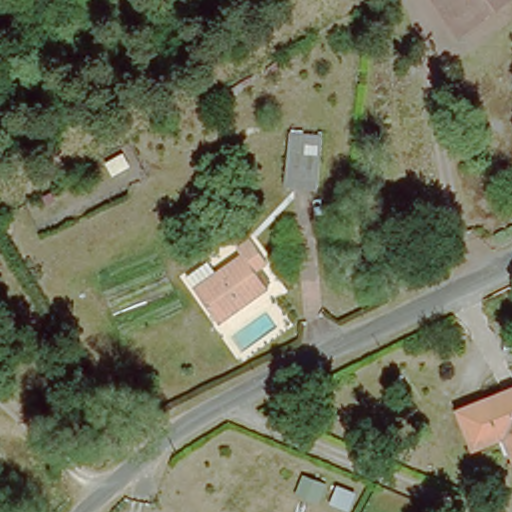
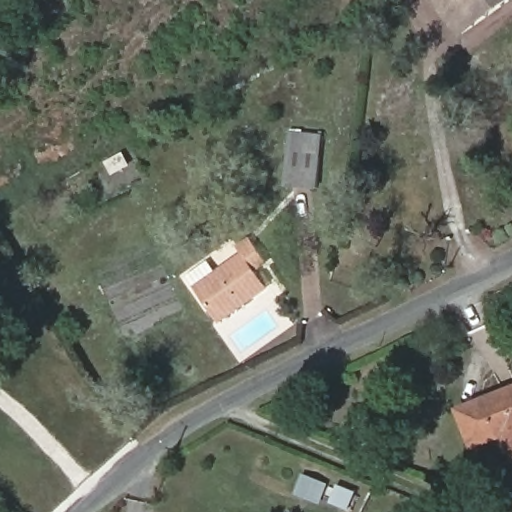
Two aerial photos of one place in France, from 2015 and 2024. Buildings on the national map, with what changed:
unchanged [(458,34),(433,0),(510,0),(458,34)]
unchanged [(317,186),(286,185),(287,181),(287,170),(288,134),(293,134),(308,135),(314,135),(320,135),(317,186)]
unchanged [(255,241),(269,264),(258,272),(267,288),(217,319),(204,297),(197,287),(246,257),(241,250),(255,241)]
unchanged [(512,387),(512,396),(505,398),(502,393),(502,390),(512,387)]
unchanged [(474,445),(461,406),(502,393),(505,398),(512,396),(512,448),(508,449),(505,435),(474,445)]
unchanged [(512,448),(512,459),(508,449),(512,448)]

